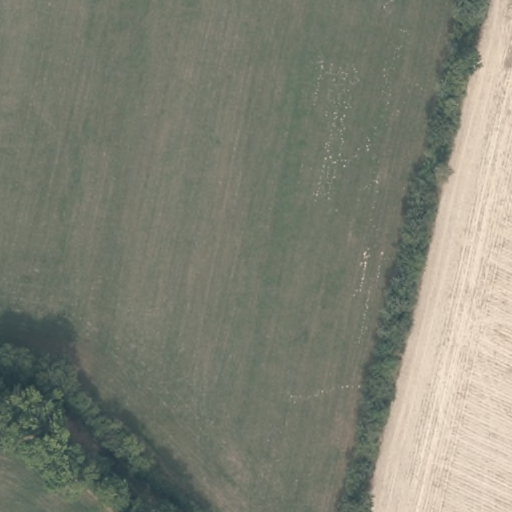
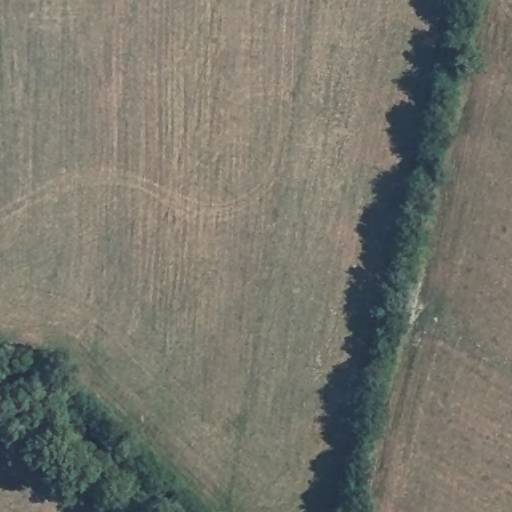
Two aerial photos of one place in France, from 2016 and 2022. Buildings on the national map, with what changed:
[]

